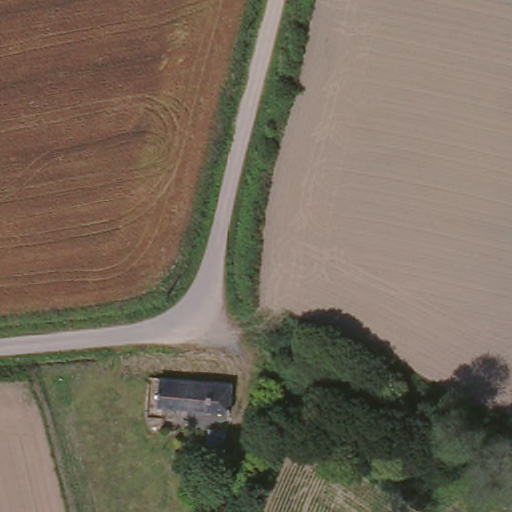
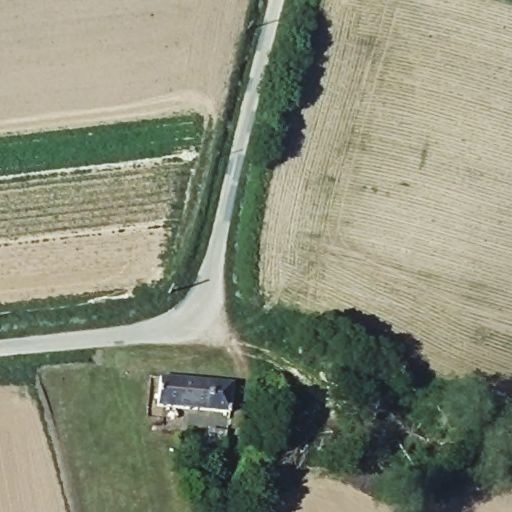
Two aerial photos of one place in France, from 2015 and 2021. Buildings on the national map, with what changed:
unchanged [(236,374),(233,411),(170,411),(169,424),(149,426),(153,386),(163,385),(164,368),(236,374)]

